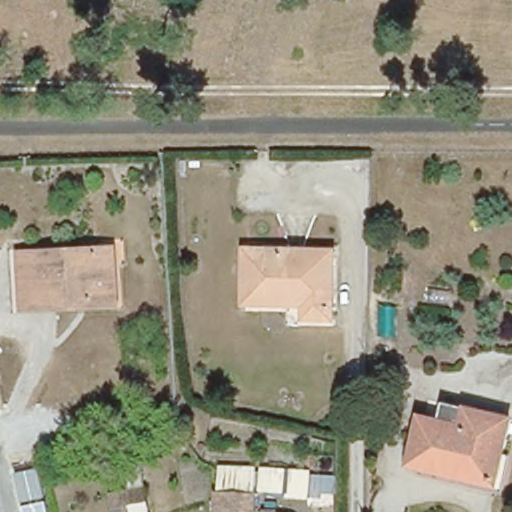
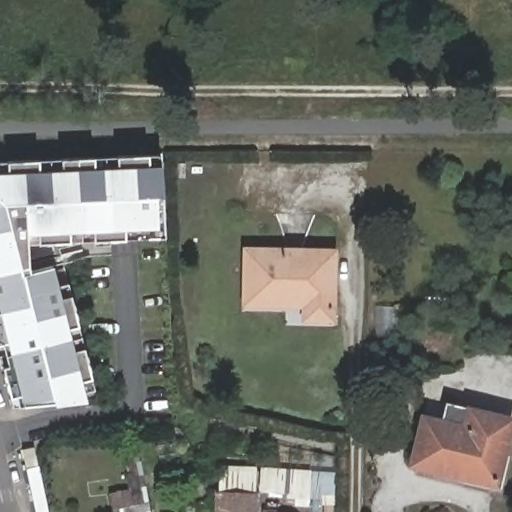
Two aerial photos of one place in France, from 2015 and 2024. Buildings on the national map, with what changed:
new [(166,236),(30,245),(33,270),(56,265),(61,284),(70,282),(93,379),(84,381),(88,401),(18,407),(0,340),(0,160),(162,153),(166,236)]
unchanged [(250,245),(336,246),(334,315),(308,313),(308,288),(265,286),(264,295),(248,294),(250,245)]
demolished [(102,249),(103,262),(117,261),(118,306),(93,306),(93,296),(42,297),(42,249),(102,249)]
unchanged [(461,482),(412,470),(424,425),(466,433),(472,418),(509,427),(497,479),(494,490),(461,482)]
new [(34,446),(48,512),(34,512),(22,448),(34,446)]
unchanged [(335,466),(334,490),(271,488),(272,465),(335,466)]
unchanged [(237,467),(237,487),(252,487),(252,512),(213,512),(213,487),(219,487),(219,466),(237,467)]
unchanged [(142,490),(148,512),(114,512),(110,497),(142,490)]

